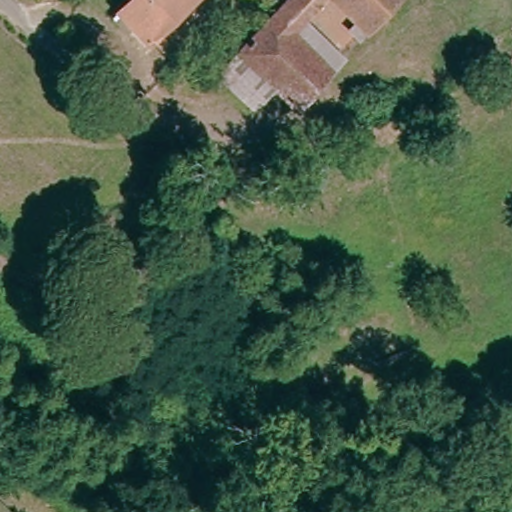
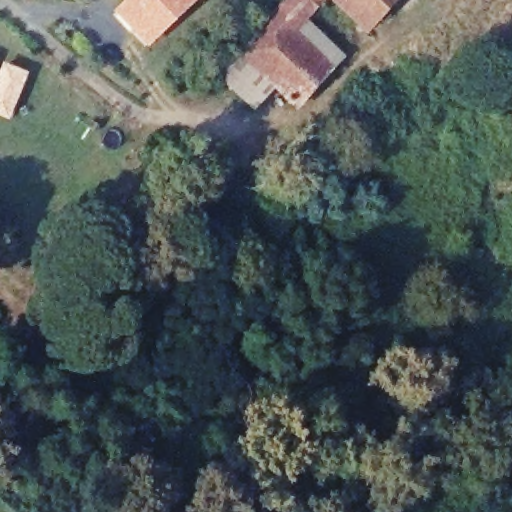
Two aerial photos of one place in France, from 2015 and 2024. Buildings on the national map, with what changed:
unchanged [(133,36),(116,19),(121,15),(136,0),(198,0),(151,45),(147,48),(133,35),(133,36)]
unchanged [(346,57),(302,106),(281,88),(244,53),(293,0),(330,0),(309,21),(346,57)]
unchanged [(359,19),(339,0),(399,0),(371,30),(362,39),(351,29),(359,19)]
unchanged [(281,88),(259,112),(222,77),(244,53),(281,88)]
new [(0,73),(4,63),(29,74),(9,121),(0,116),(0,73)]

